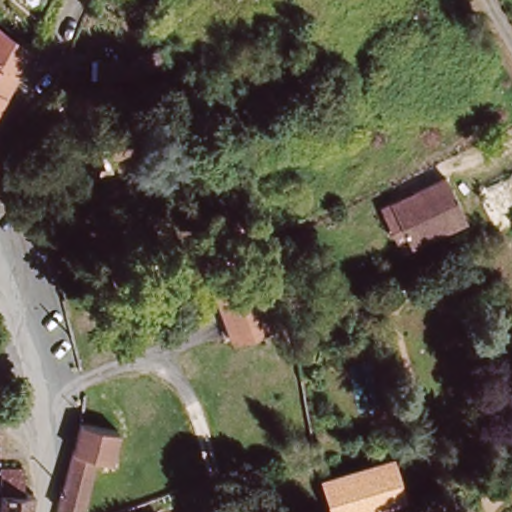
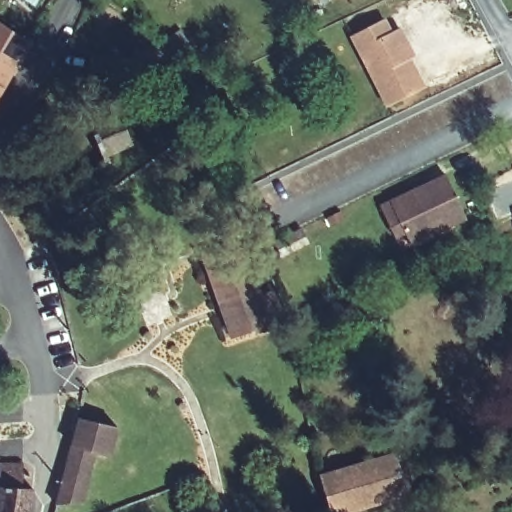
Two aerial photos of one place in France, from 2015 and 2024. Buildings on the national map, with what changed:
new [(392,33),(400,29),(408,44),(414,58),(410,59),(424,88),(389,105),(354,35),(385,20),(392,33)]
unchanged [(27,47),(0,95),(0,24),(30,42),(27,47)]
unchanged [(58,66),(65,48),(89,51),(82,68),(58,66)]
unchanged [(90,129),(121,113),(134,139),(102,154),(90,129)]
unchanged [(386,225),(380,212),(445,182),(465,223),(409,249),(403,237),(394,241),(386,225)]
unchanged [(273,234),(292,226),(301,222),(307,237),(298,240),(279,249),(273,234)]
unchanged [(237,253),(255,304),(265,300),(272,318),(262,322),(266,331),(230,345),(200,266),(237,253)]
unchanged [(76,420),(114,429),(107,457),(90,453),(80,504),(55,502),(76,420)]
unchanged [(322,477),(392,458),(404,494),(336,512),(330,512),(322,477)]
unchanged [(25,467),(24,489),(34,491),(30,512),(0,512),(0,496),(1,489),(1,467),(25,467)]

